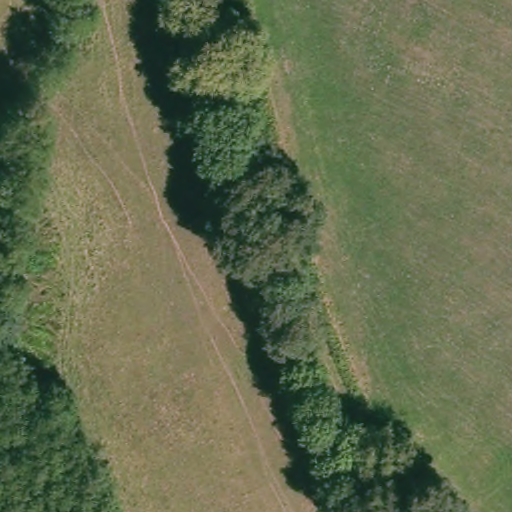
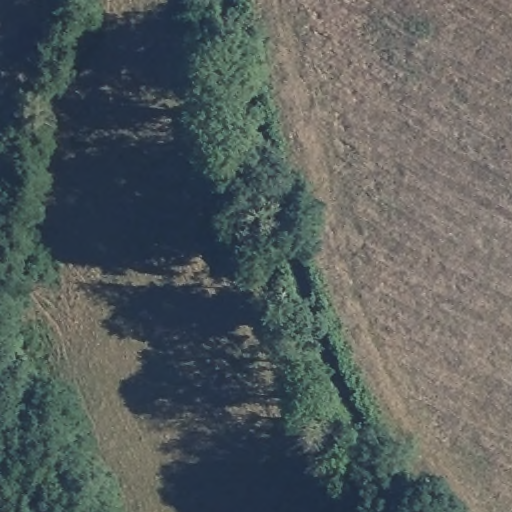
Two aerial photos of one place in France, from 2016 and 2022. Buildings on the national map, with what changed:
[]

